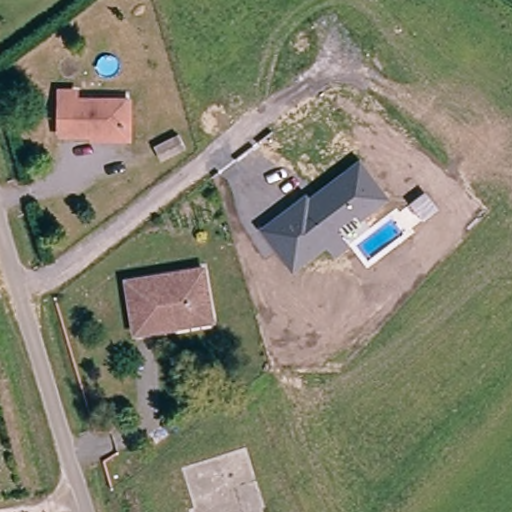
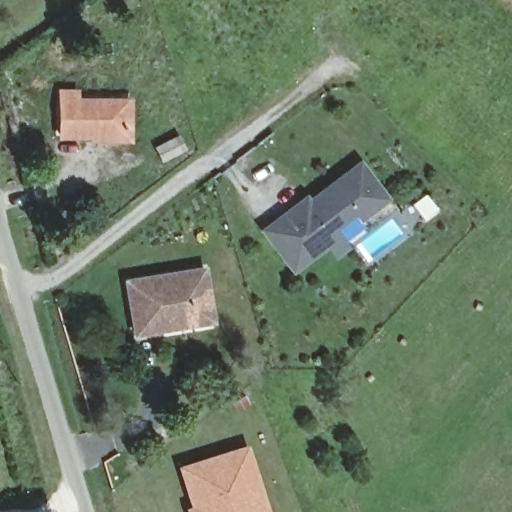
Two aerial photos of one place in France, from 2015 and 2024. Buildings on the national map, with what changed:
unchanged [(75,87),(75,97),(124,97),(124,132),(55,132),(55,87),(75,87)]
unchanged [(179,131),(186,144),(162,157),(155,143),(179,131)]
unchanged [(305,192),(309,197),(359,159),(389,199),(360,221),(356,215),(337,231),(350,246),(335,257),(326,247),(293,273),(259,229),(305,192)]
unchanged [(131,332),(126,277),(203,271),(207,325),(190,326),(150,330),(131,332)]
new [(187,512),(185,507),(190,505),(177,466),(249,443),(270,512),(187,512)]

